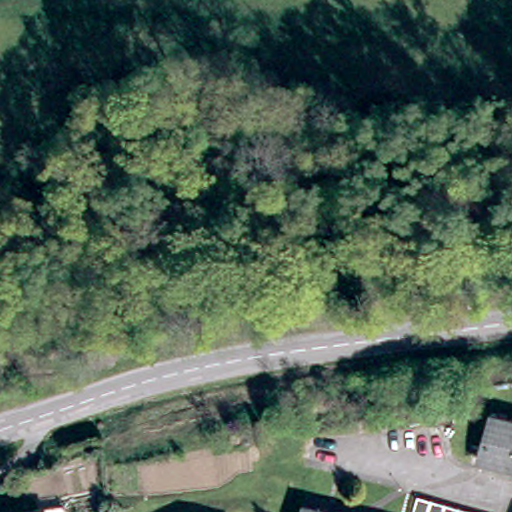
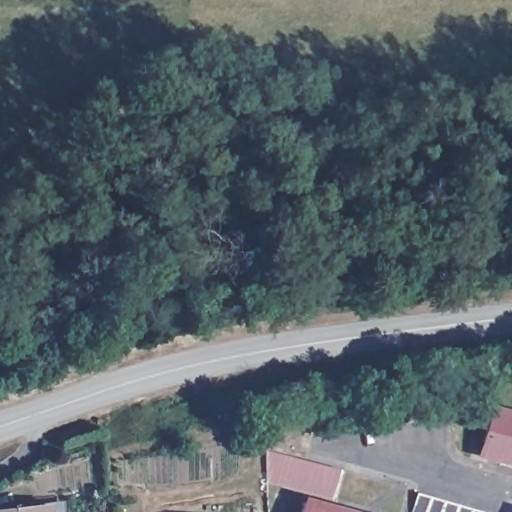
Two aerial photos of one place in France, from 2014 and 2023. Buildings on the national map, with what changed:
unchanged [(473,450),(472,448),(486,411),(512,419),(512,464),(475,452),(473,450)]
new [(340,470),(332,499),(265,482),(263,450),(340,470)]
unchanged [(418,494),(421,486),(498,509),(497,512),(413,512),(418,494)]
unchanged [(356,512),(299,512),(305,496),(356,512)]
unchanged [(48,506),(49,512),(0,512),(0,510),(48,506)]

